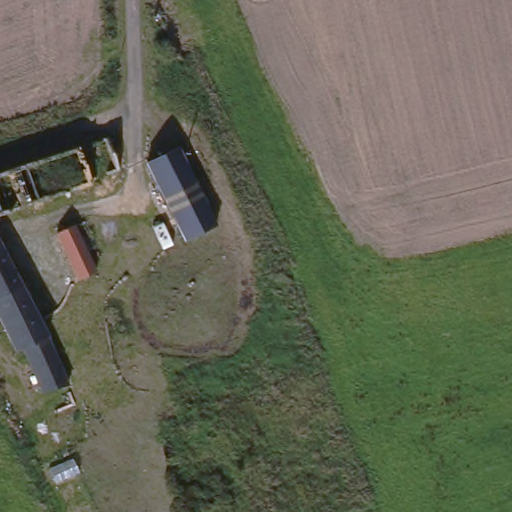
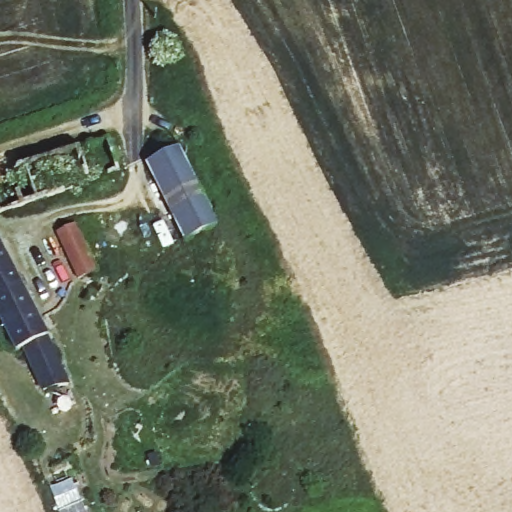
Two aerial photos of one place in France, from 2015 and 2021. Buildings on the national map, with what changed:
unchanged [(213,227),(181,242),(145,165),(150,163),(177,151),(213,227)]
unchanged [(97,267),(77,278),(53,230),(76,220),(97,267)]
unchanged [(8,356),(0,340),(0,254),(42,343),(8,356)]
unchanged [(41,392),(22,351),(42,343),(52,340),(70,383),(41,392)]

